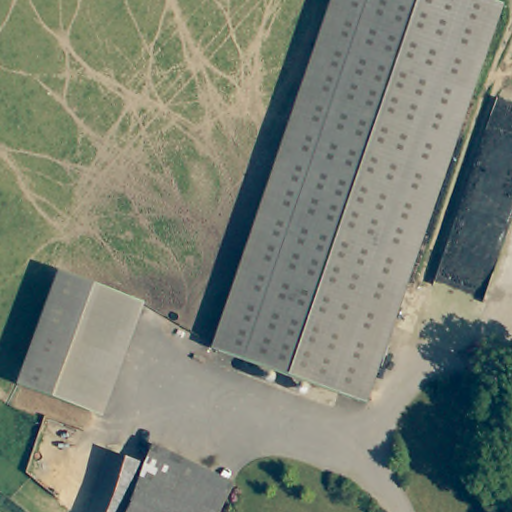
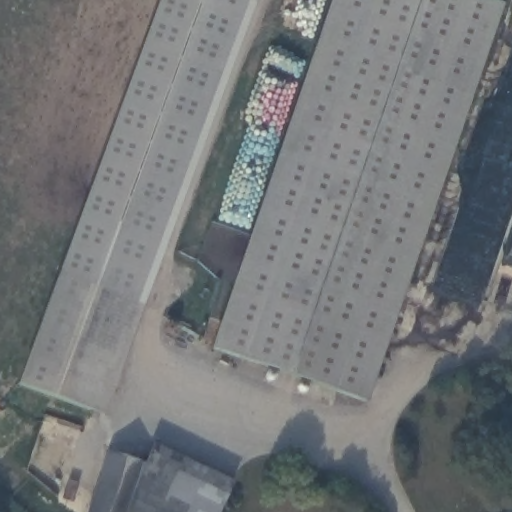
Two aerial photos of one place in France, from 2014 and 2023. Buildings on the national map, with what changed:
new [(17,384),(159,0),(257,0),(104,416),(17,384)]
unchanged [(486,0),(501,5),(372,398),(220,349),(332,0),(486,0)]
unchanged [(105,446),(140,461),(149,442),(230,479),(216,512),(159,512),(95,481),(105,446)]
unchanged [(159,512),(86,512),(95,481),(159,512)]

